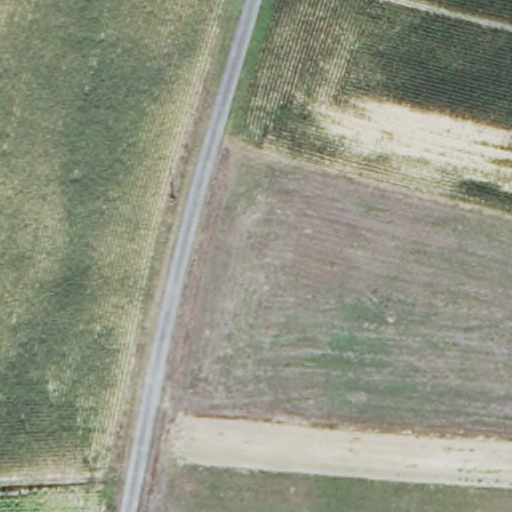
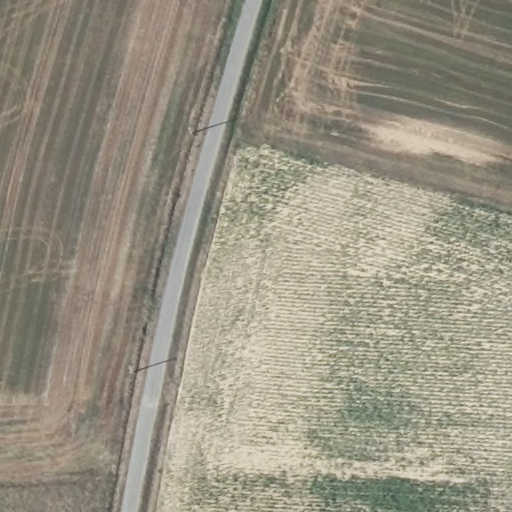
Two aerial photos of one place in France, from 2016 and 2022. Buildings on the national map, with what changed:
[]

